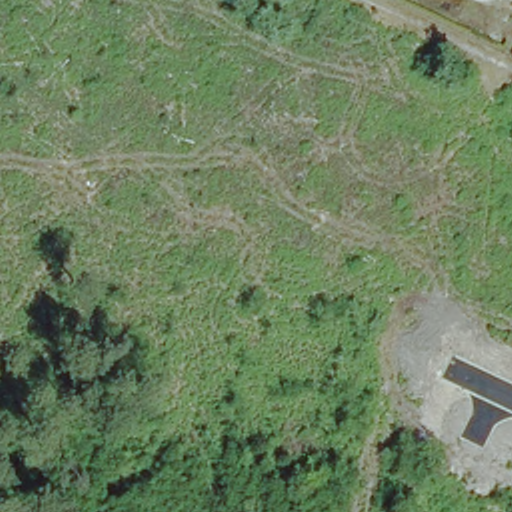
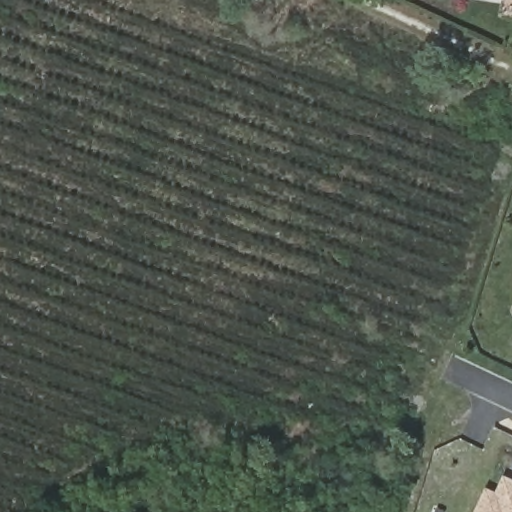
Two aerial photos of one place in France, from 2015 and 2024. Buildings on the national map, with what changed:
unchanged [(507,0),(512,0),(512,2),(507,1),(507,0)]
new [(485,488),(495,493),(502,475),(512,479),(512,512),(474,512),(485,488)]

